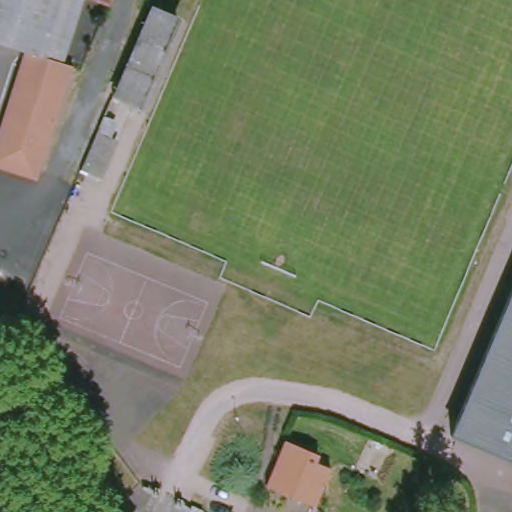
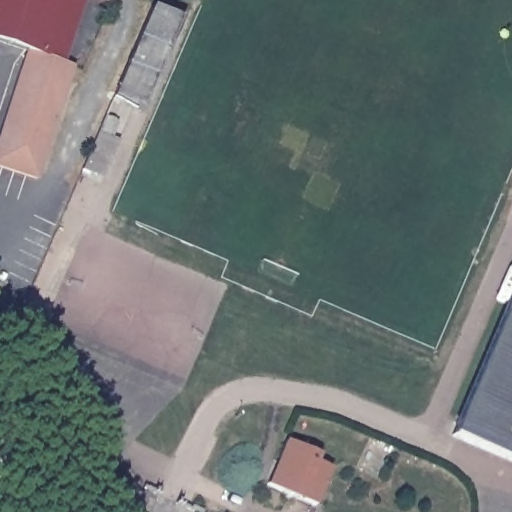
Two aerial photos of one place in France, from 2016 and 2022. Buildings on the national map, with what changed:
unchanged [(0,166),(0,142),(30,51),(0,41),(0,0),(86,0),(66,63),(78,67),(40,179),(0,166)]
unchanged [(113,3),(103,0),(115,0),(113,3)]
unchanged [(188,21),(149,112),(123,101),(163,9),(188,21)]
unchanged [(112,136),(95,175),(82,170),(99,130),(112,136)]
unchanged [(512,300),(512,466),(453,441),(512,300)]
unchanged [(294,440),(327,455),(323,464),(339,471),(323,506),(275,484),(294,440)]

